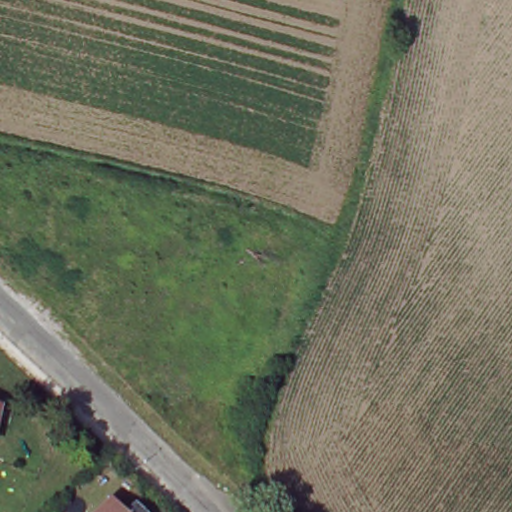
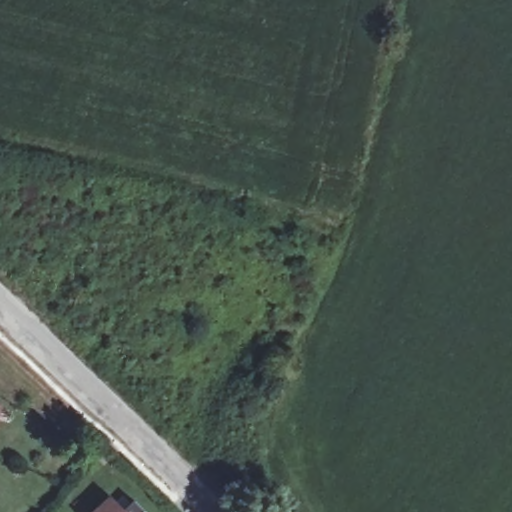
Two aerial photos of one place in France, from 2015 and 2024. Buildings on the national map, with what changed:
unchanged [(126,511),(135,501),(145,512),(96,512),(112,497),(126,511)]

